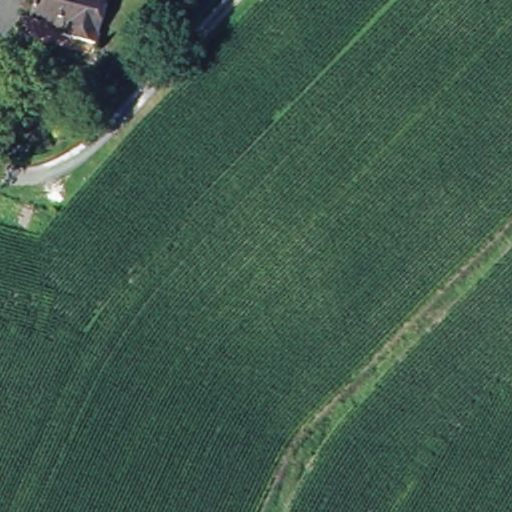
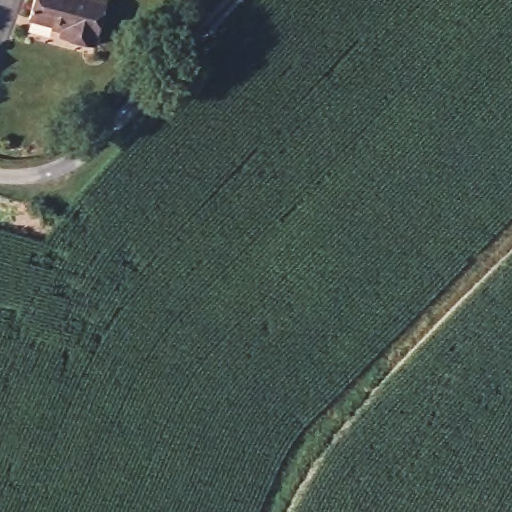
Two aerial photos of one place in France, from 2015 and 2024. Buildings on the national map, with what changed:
unchanged [(67,36),(70,26),(34,16),(39,0),(113,0),(99,44),(67,36)]

